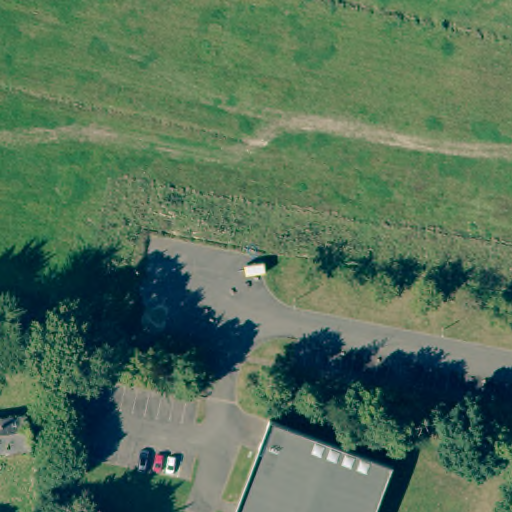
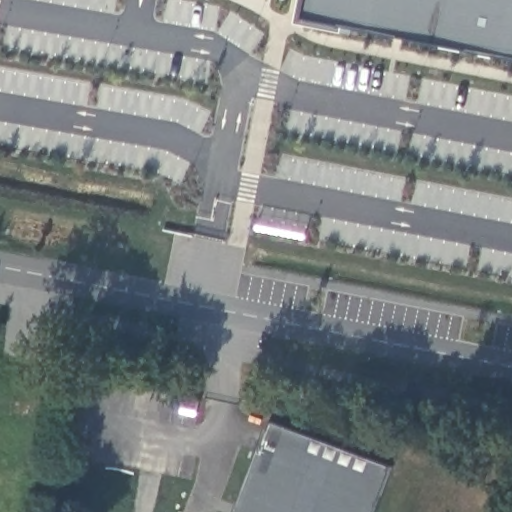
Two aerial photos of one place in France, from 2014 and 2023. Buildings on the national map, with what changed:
new [(305,0),(512,0),(512,58),(302,18),(305,0)]
unchanged [(394,463),(375,512),(234,512),(270,417),(394,463)]
demolished [(0,456),(0,423),(29,419),(34,451),(0,456)]

